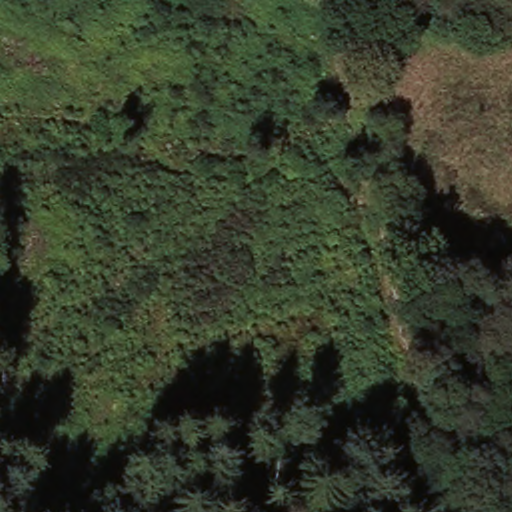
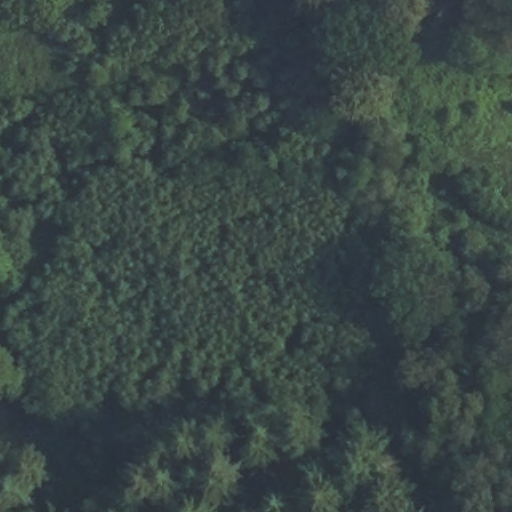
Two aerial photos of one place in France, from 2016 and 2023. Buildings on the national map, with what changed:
[]

